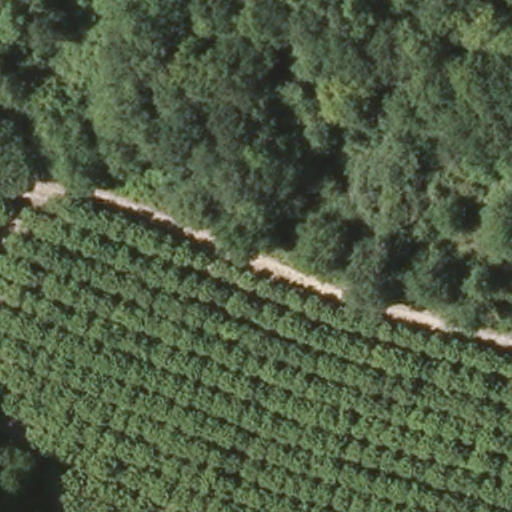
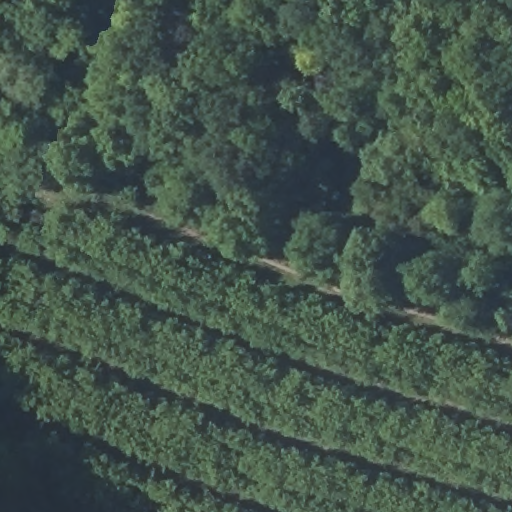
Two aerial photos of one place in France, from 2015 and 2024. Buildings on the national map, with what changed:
[]

